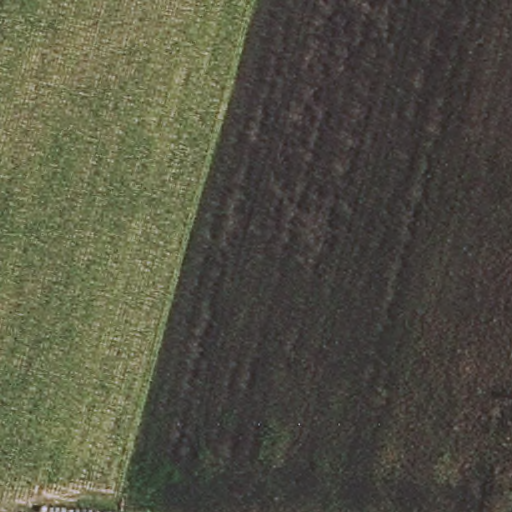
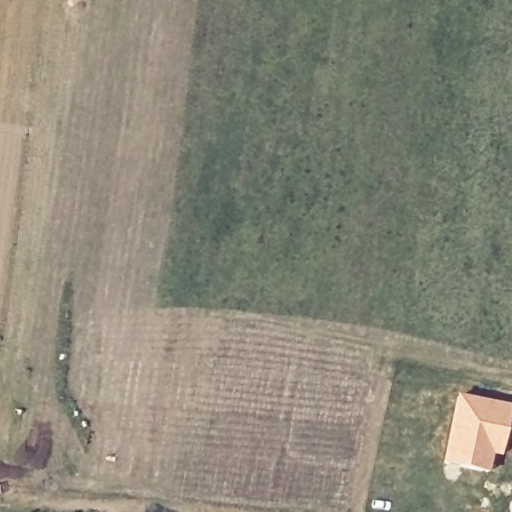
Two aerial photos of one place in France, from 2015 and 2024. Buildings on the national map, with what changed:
new [(512,403),(512,408),(501,457),(493,455),(489,471),(441,462),(456,392),(512,403)]

